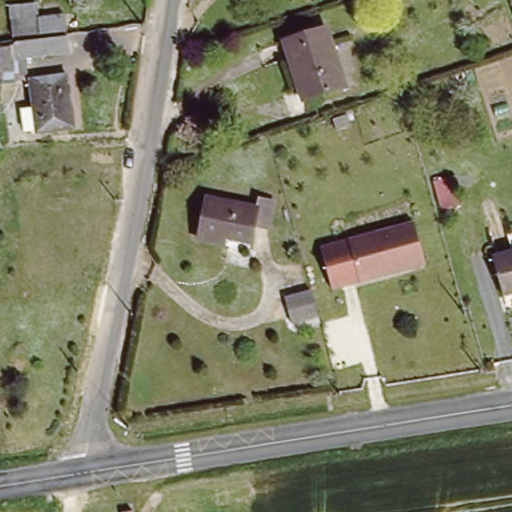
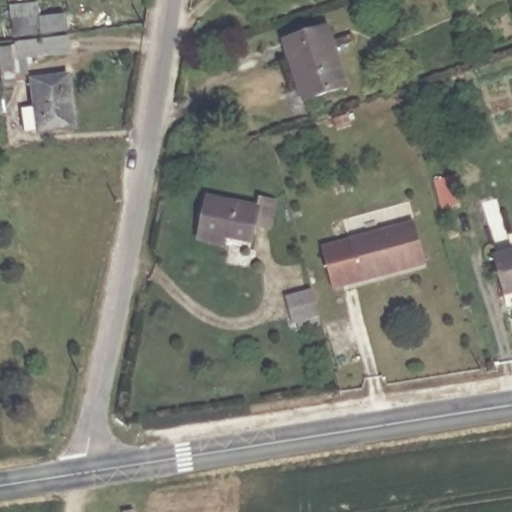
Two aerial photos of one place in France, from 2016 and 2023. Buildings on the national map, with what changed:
unchanged [(34,11),(37,27),(12,31),(10,14),(34,11)]
unchanged [(332,31),(347,84),(310,95),(302,66),(297,67),(294,58),(290,43),(332,31)]
unchanged [(64,40),(66,54),(18,61),(16,47),(64,40)]
unchanged [(71,78),(78,128),(39,133),(38,128),(27,130),(24,107),(35,105),(32,84),(71,78)]
unchanged [(275,203),(270,230),(257,227),(255,236),(227,230),(223,247),(200,242),(210,200),(260,207),(262,200),(275,203)]
unchanged [(388,271),(388,272),(333,287),(322,247),(416,219),(427,259),(388,271)]
unchanged [(512,253),(512,294),(506,296),(495,257),(512,253)]
unchanged [(321,317),(295,325),(288,299),(314,292),(321,317)]

